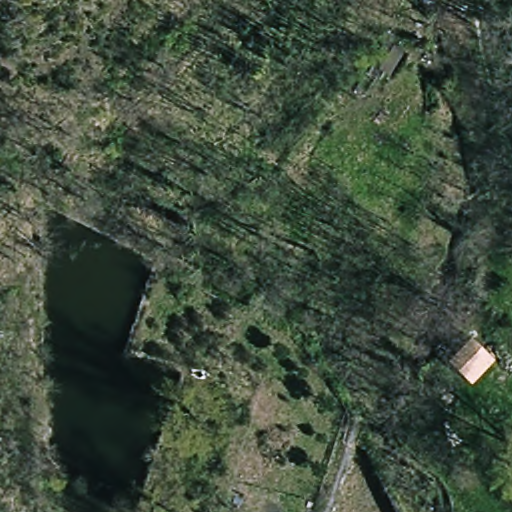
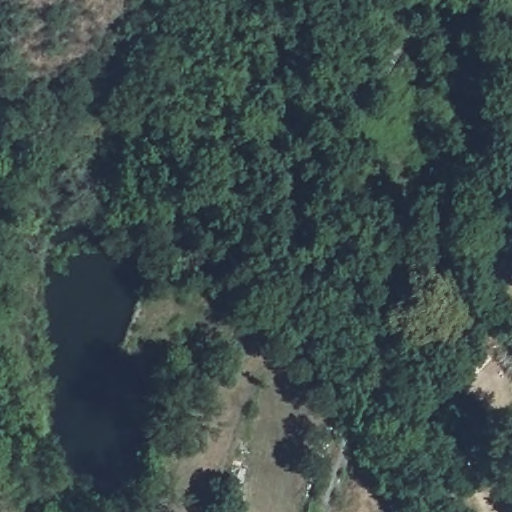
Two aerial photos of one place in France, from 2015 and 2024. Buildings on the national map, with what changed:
unchanged [(471,333),(497,361),(471,382),(447,356),(471,333)]

